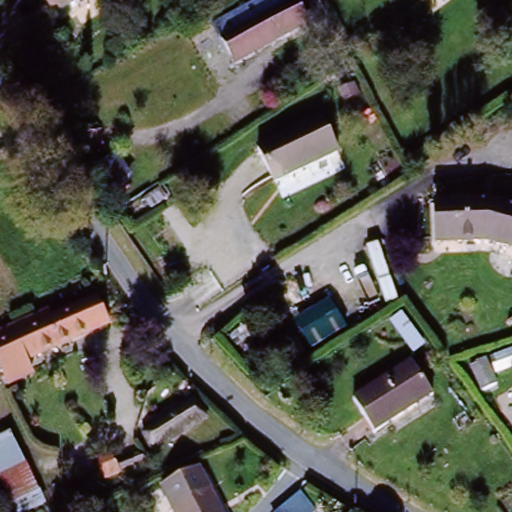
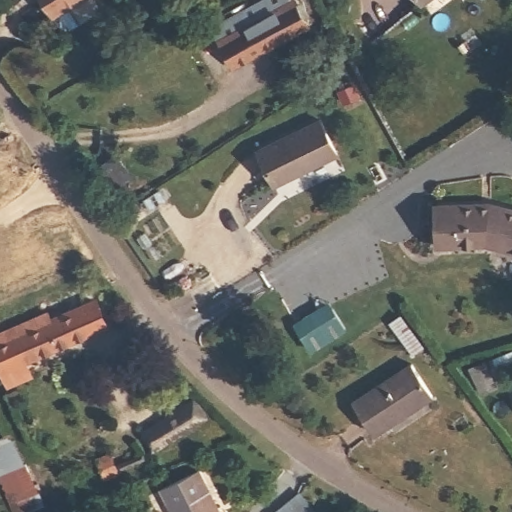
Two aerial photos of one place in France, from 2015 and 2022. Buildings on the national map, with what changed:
unchanged [(50,14),(43,0),(77,0),(50,14)]
unchanged [(424,2),(422,0),(427,0),(424,2)]
unchanged [(281,7),(296,31),(236,67),(220,41),(281,7)]
unchanged [(338,88),(354,82),(364,105),(348,110),(338,88)]
unchanged [(278,188),(254,155),(311,117),(336,150),(278,188)]
unchanged [(512,206),(512,256),(472,239),(441,232),(446,194),(500,200),(512,206)]
unchanged [(35,364),(37,376),(7,389),(0,366),(0,337),(94,296),(111,325),(35,364)]
unchanged [(424,348),(412,357),(389,326),(402,317),(424,348)]
unchanged [(496,379),(499,387),(484,392),(473,367),(512,353),(512,373),(496,379)]
unchanged [(412,363),(434,395),(375,433),(353,401),(412,363)]
unchanged [(192,404),(204,422),(166,448),(153,431),(192,404)]
unchanged [(14,512),(0,479),(0,440),(14,435),(45,510),(42,512),(14,512)]
unchanged [(146,478),(151,489),(134,497),(128,486),(146,478)]
unchanged [(121,486),(129,505),(114,512),(106,491),(121,486)]
unchanged [(219,512),(173,512),(171,510),(208,491),(219,512)]

